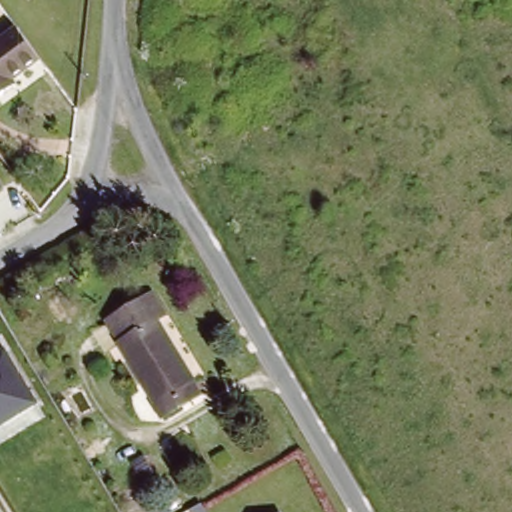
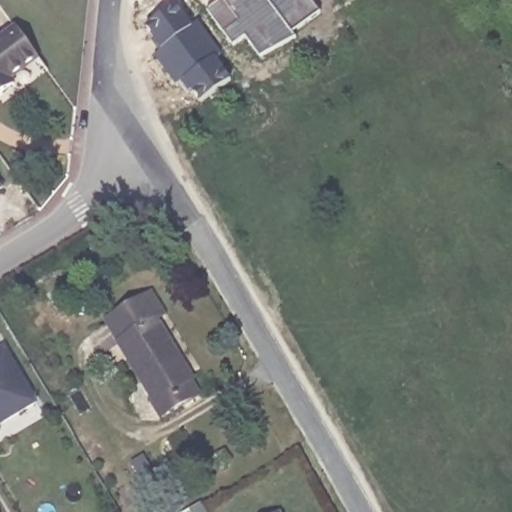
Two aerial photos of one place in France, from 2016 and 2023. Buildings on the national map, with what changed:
new [(297,38),(261,57),(246,36),(235,45),(208,10),(221,0),(226,0),(232,9),(244,0),(312,0),(322,13),(294,33),(297,38)]
new [(177,6),(193,27),(198,23),(222,55),(216,58),(232,80),(201,102),(185,79),(177,84),(156,55),(164,50),(147,28),(177,6)]
unchanged [(8,84),(13,91),(0,100),(0,44),(16,32),(38,62),(8,84)]
unchanged [(0,188),(0,178),(5,184),(0,188)]
unchanged [(177,407),(158,418),(102,321),(150,293),(163,317),(155,321),(190,381),(198,396),(177,407)]
unchanged [(38,400),(0,425),(0,347),(5,343),(38,400)]
new [(198,505),(203,512),(187,512),(198,505)]

